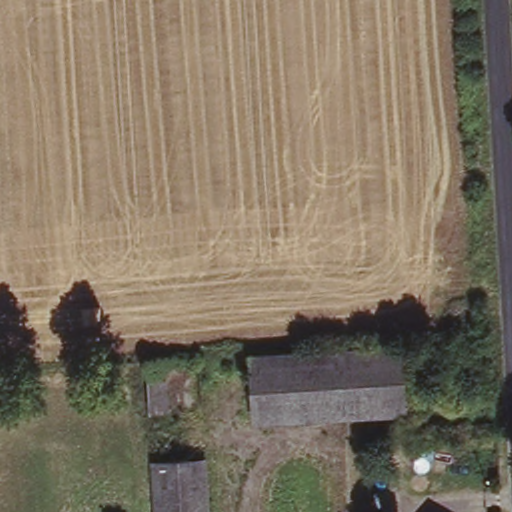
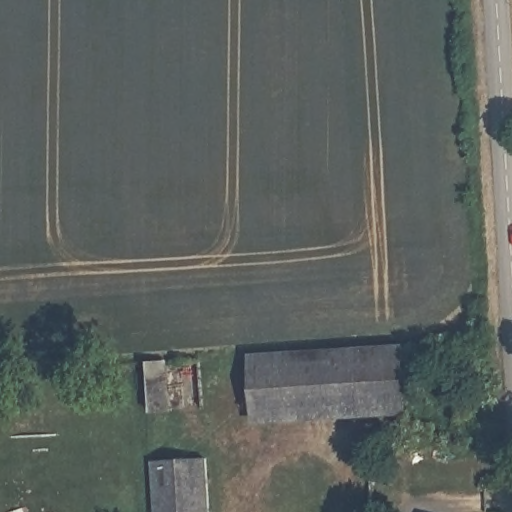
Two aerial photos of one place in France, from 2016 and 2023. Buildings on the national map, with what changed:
unchanged [(413,414),(259,420),(257,352),(411,345),(413,414)]
unchanged [(165,410),(147,411),(145,365),(164,364),(165,410)]
unchanged [(215,512),(160,512),(159,461),(213,456),(215,512)]

